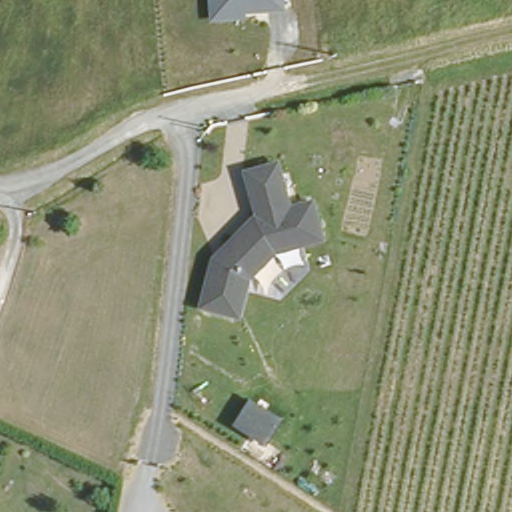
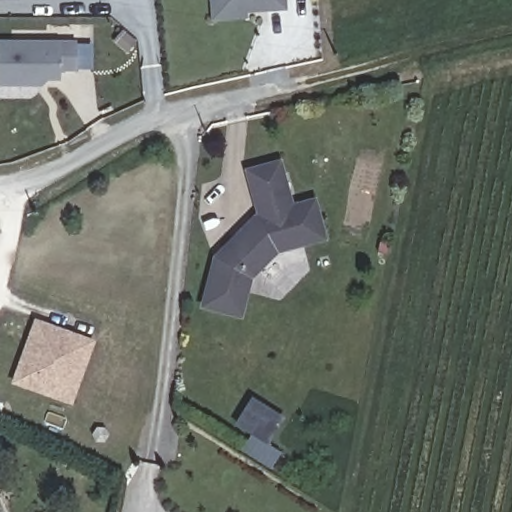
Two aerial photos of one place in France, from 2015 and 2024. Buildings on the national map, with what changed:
unchanged [(287,11),(247,13),(247,19),(212,20),(211,0),(287,0),(287,11)]
new [(76,42),(75,71),(59,72),(59,81),(47,81),(40,87),(0,86),(0,40),(76,42)]
unchanged [(279,247),(251,276),(240,313),(201,303),(213,254),(258,211),(245,166),(279,157),(291,202),(315,198),(326,238),(279,247)]
new [(58,398),(16,383),(37,322),(68,332),(78,336),(94,342),(78,390),(73,403),(58,398)]
unchanged [(266,446),(233,422),(251,396),(284,418),(266,446)]

